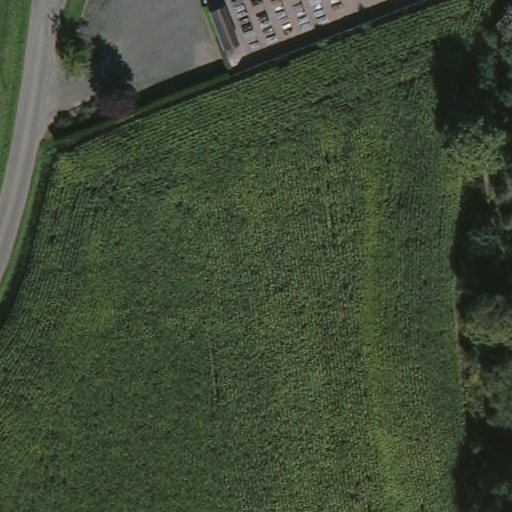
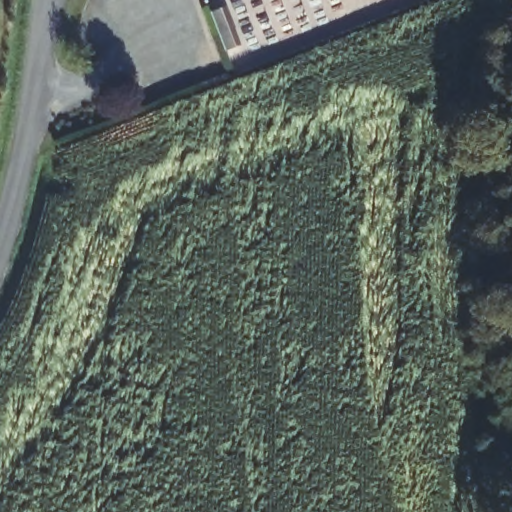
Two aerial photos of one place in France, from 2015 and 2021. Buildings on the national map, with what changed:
unchanged [(231,8),(244,43),(223,49),(209,15),(231,8)]

